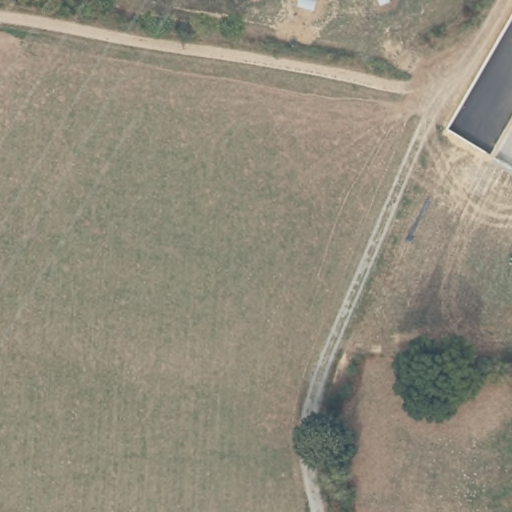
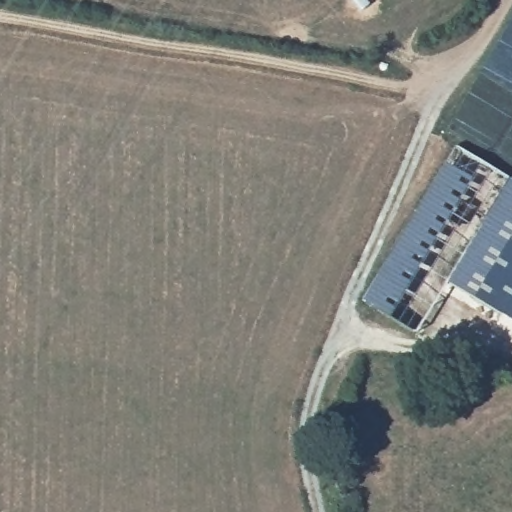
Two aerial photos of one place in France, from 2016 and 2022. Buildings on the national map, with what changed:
new [(455,145),(512,180),(512,321),(446,282),(415,335),(361,301),(455,145)]

